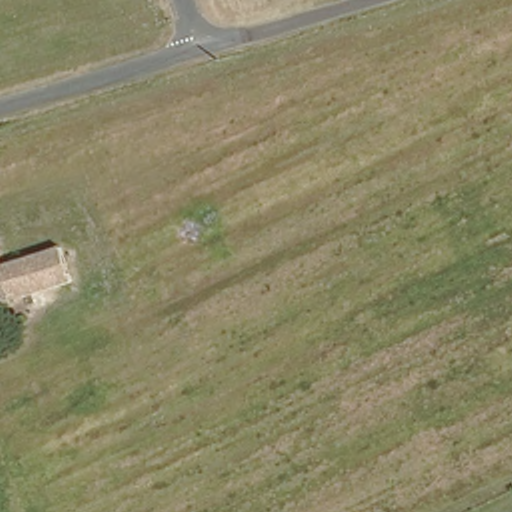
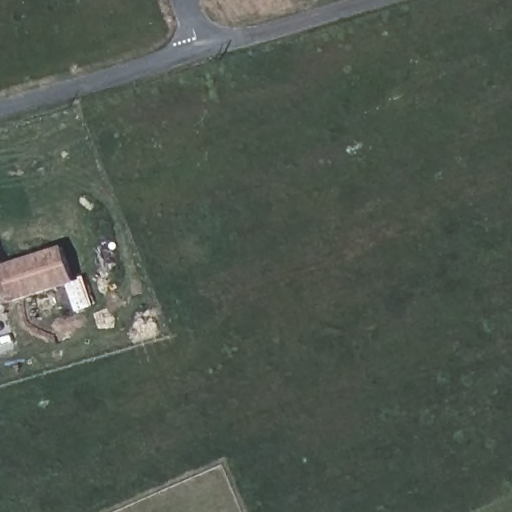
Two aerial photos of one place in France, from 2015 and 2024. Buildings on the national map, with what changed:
unchanged [(5,271),(64,252),(75,283),(0,308),(0,257),(5,271)]

